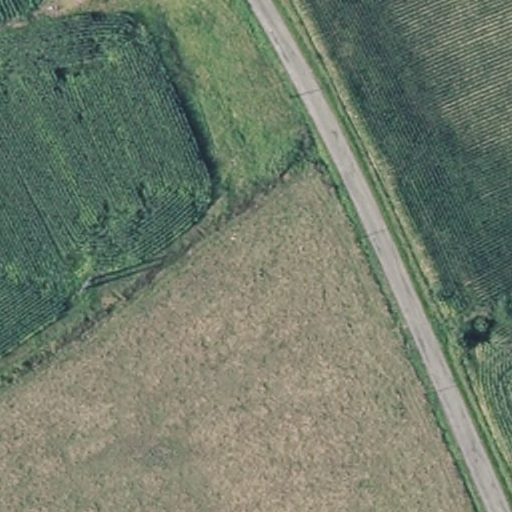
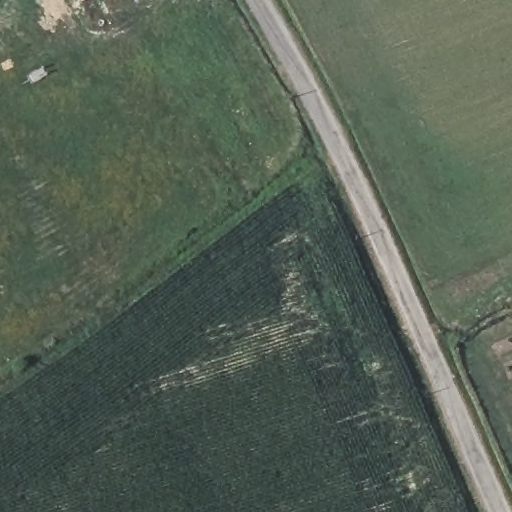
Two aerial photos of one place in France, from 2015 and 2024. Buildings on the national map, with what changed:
unchanged [(99,0),(82,7),(79,0),(99,0)]

